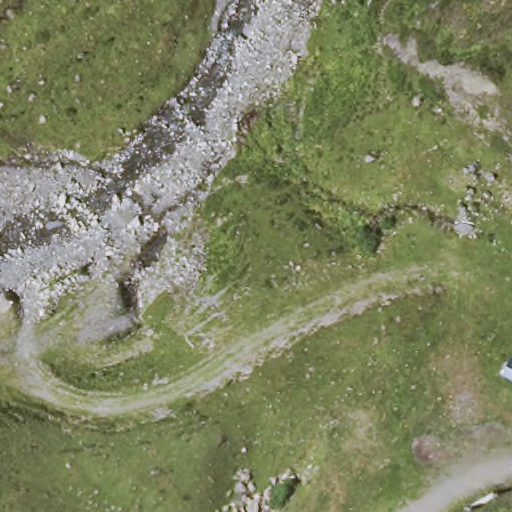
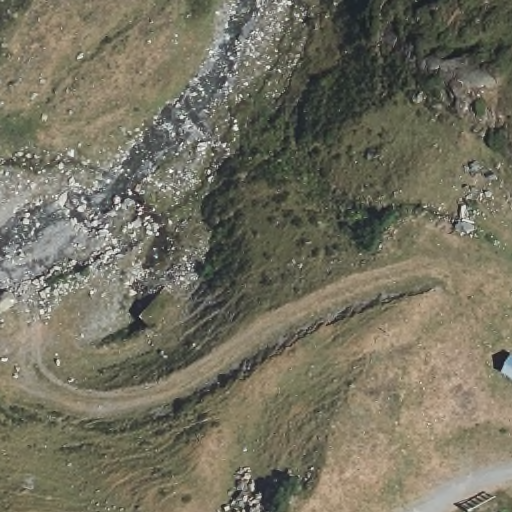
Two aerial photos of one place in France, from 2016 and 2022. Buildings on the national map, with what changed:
unchanged [(494,378),(506,358),(512,361),(512,388),(509,387),(494,378)]

